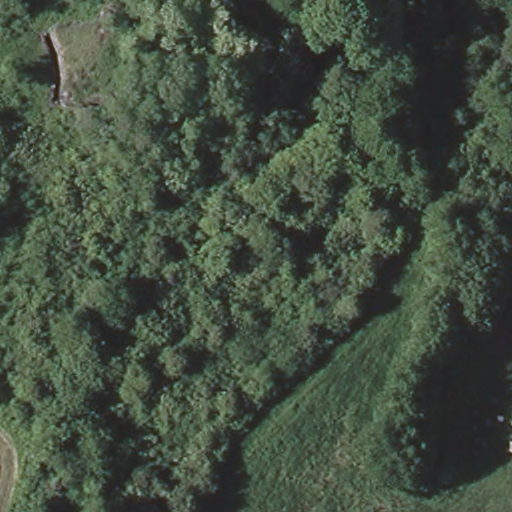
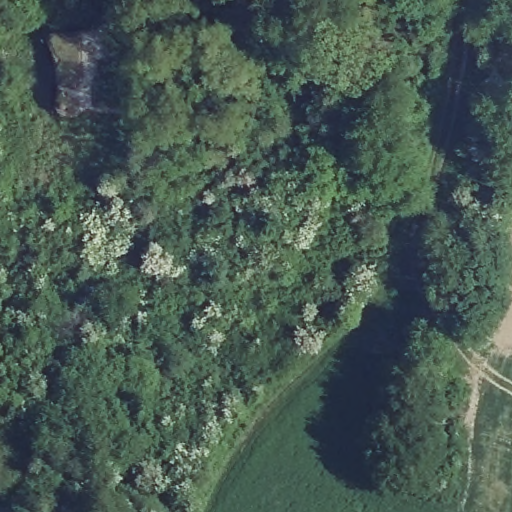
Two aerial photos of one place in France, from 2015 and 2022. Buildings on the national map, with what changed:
unchanged [(81,31),(120,14),(135,106),(99,100),(62,112),(66,75),(52,33),(81,31)]

